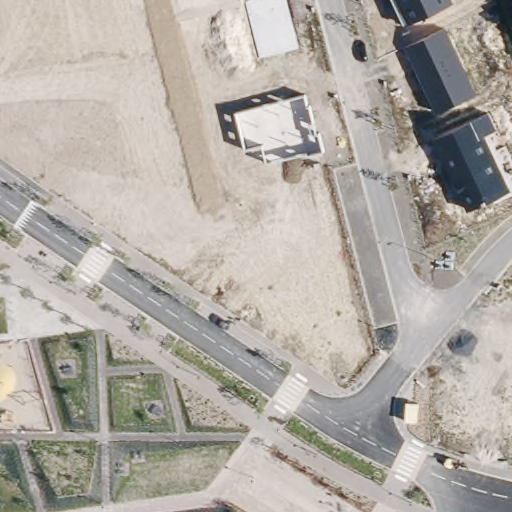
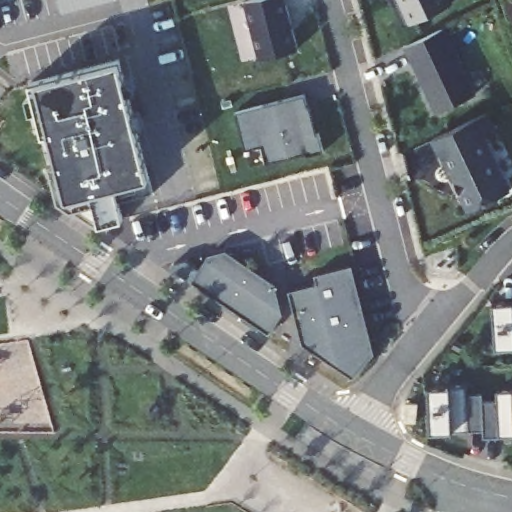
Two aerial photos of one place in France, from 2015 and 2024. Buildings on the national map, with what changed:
new [(89,6),(75,10),(60,13),(57,0),(113,0),(103,2),(89,6)]
unchanged [(260,58),(246,1),(250,0),(286,0),(299,48),(260,58)]
unchanged [(407,23),(406,22),(403,23),(392,0),(452,0),(454,2),(407,23)]
unchanged [(477,91),(436,112),(403,46),(446,27),(477,91)]
new [(118,58),(123,77),(131,75),(134,90),(128,93),(133,111),(139,111),(143,124),(136,126),(152,192),(118,199),(123,217),(98,224),(57,197),(38,113),(30,115),(25,97),(33,96),(28,82),(118,58)]
unchanged [(304,94),(308,105),(311,104),(316,125),(314,126),(316,134),(319,133),(324,151),(308,155),(306,152),(265,163),(260,146),(245,150),(235,112),(304,94)]
unchanged [(496,130),(485,135),(510,189),(469,209),(463,197),(454,201),(425,142),(488,110),(496,130)]
new [(208,253),(226,249),(275,282),(283,312),(269,333),(191,280),(208,253)]
new [(316,282),(314,274),(352,264),(374,352),(353,377),(302,343),(289,289),(316,282)]
unchanged [(512,300),(512,346),(497,347),(493,301),(512,300)]
unchanged [(428,386),(467,384),(468,393),(483,392),(484,400),(483,400),(484,430),(429,432),(428,395),(428,386)]
unchanged [(484,400),(496,399),(496,390),(512,390),(512,436),(484,437),(484,430),(483,400),(484,400)]

